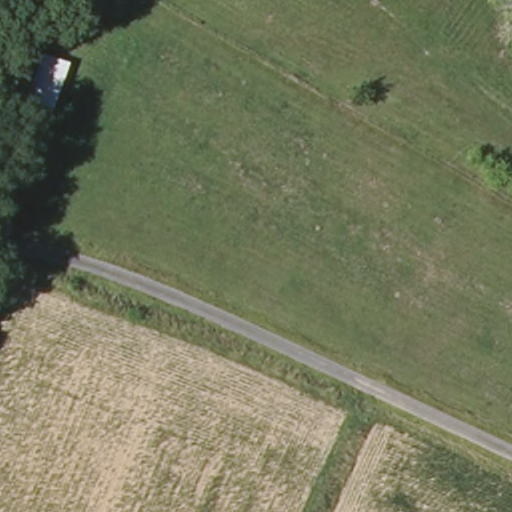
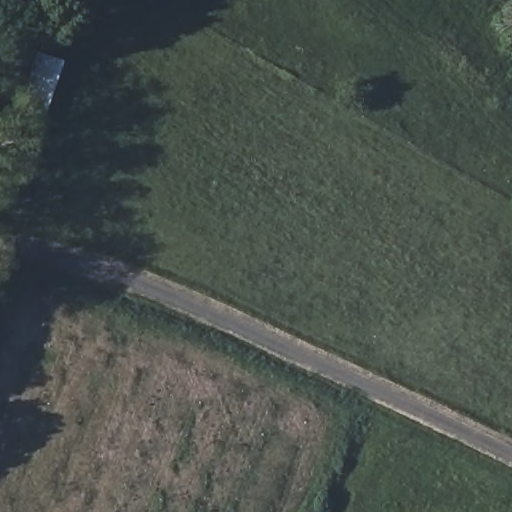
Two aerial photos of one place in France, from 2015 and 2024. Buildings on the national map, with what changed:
unchanged [(39,53),(65,59),(44,115),(22,106),(39,53)]

